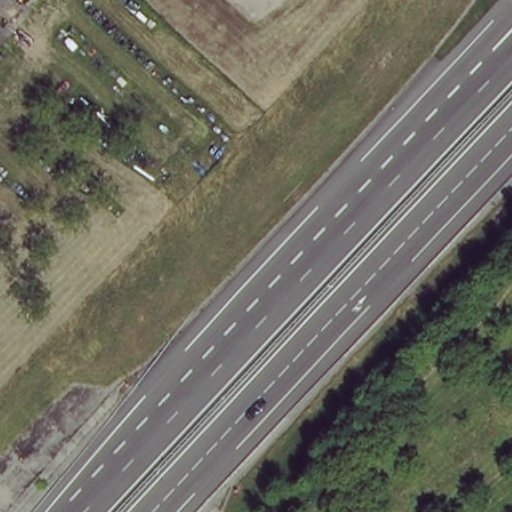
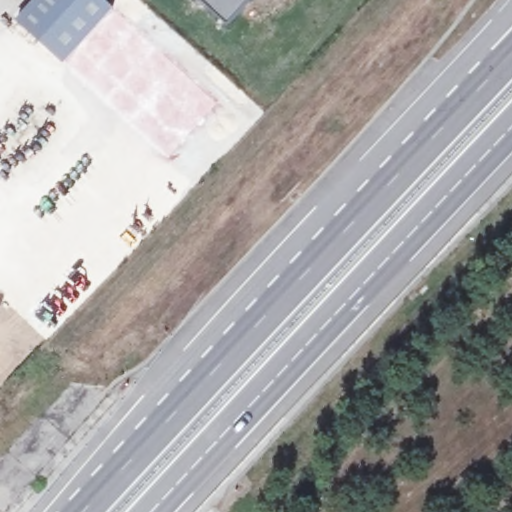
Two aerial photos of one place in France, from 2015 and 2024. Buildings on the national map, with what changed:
new [(68,9),(57,0),(104,0),(113,8),(67,61),(42,38),(68,9)]
new [(227,27),(198,0),(253,0),(227,27)]

